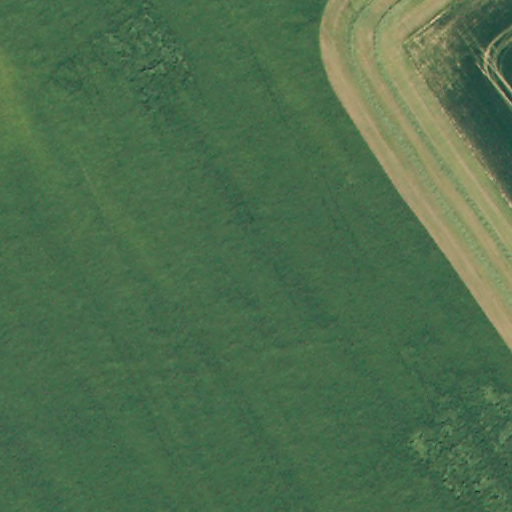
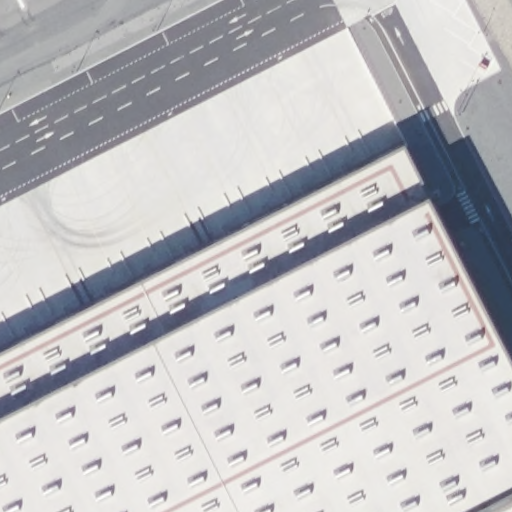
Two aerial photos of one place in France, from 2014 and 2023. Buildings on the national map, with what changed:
new [(406,150),(512,356),(512,505),(499,512),(0,512),(0,359),(406,150)]

